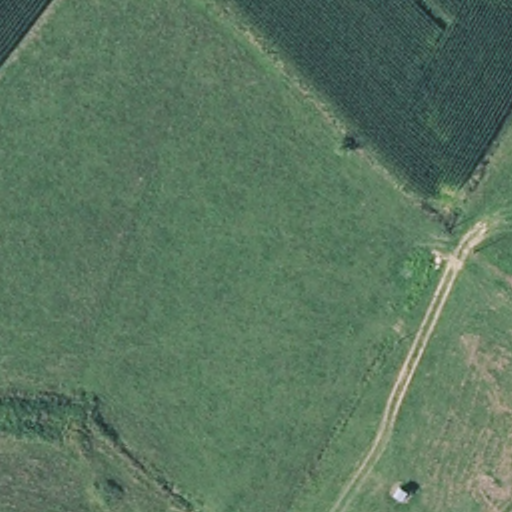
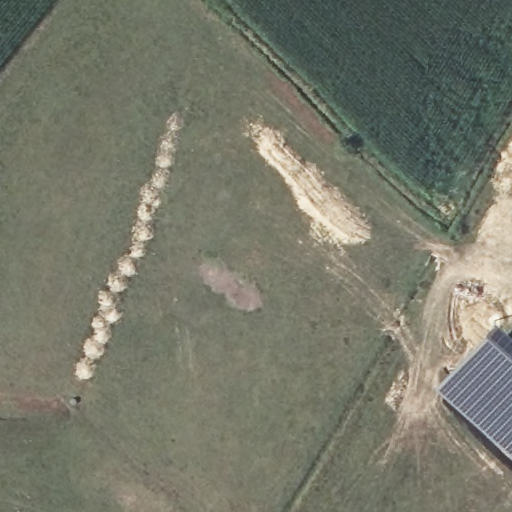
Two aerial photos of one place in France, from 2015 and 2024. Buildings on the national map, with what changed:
new [(512,332),(512,462),(505,457),(433,388),(495,318),(512,332)]

